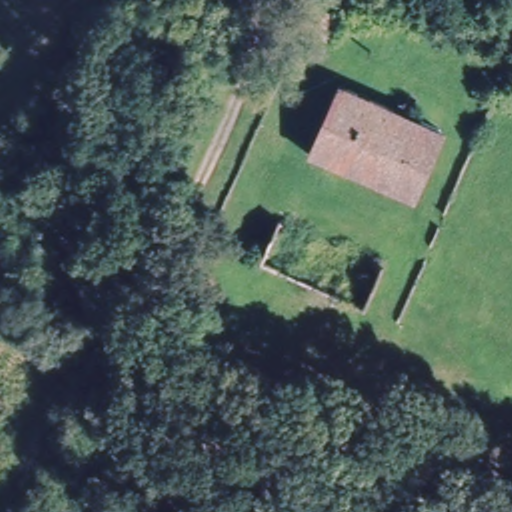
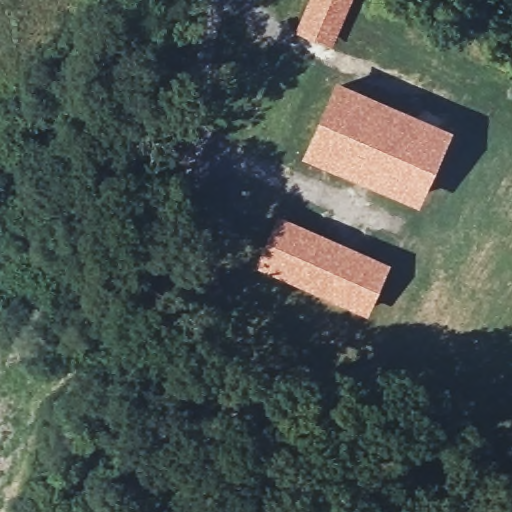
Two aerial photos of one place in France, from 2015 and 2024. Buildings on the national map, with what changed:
demolished [(316,37),(290,26),(301,0),(332,0),(316,37)]
demolished [(495,106),(487,103),(479,100),(489,76),(504,82),(495,106)]
unchanged [(416,111),(422,97),(444,105),(443,126),(413,193),(310,151),(339,81),(416,111)]
new [(279,213),(390,262),(366,315),(254,267),(279,213)]

